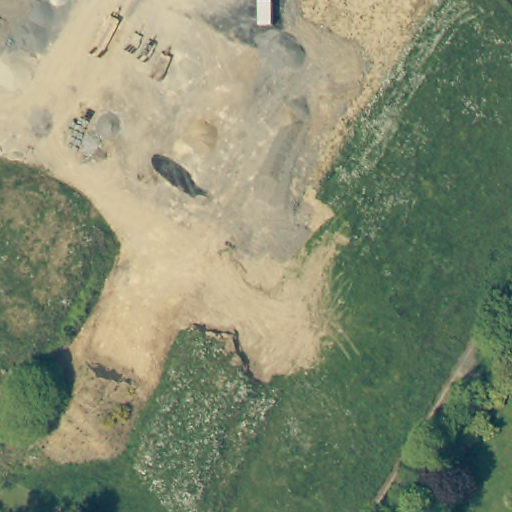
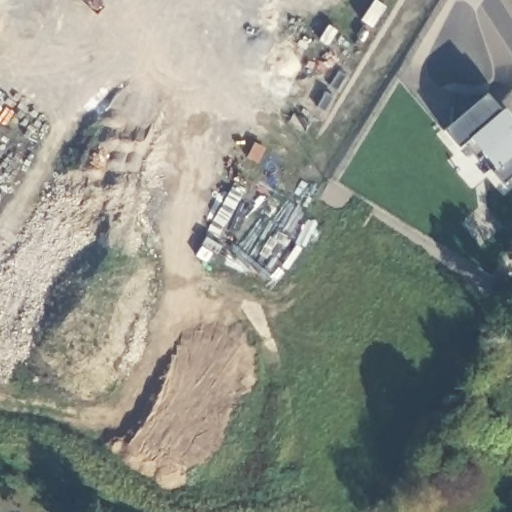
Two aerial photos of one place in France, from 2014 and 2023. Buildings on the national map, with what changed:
new [(488,96),(501,113),(504,111),(512,120),(512,177),(504,184),(470,141),(458,150),(445,132),(488,96)]

